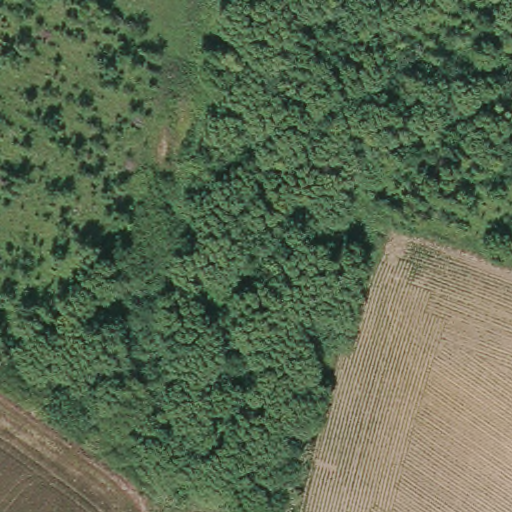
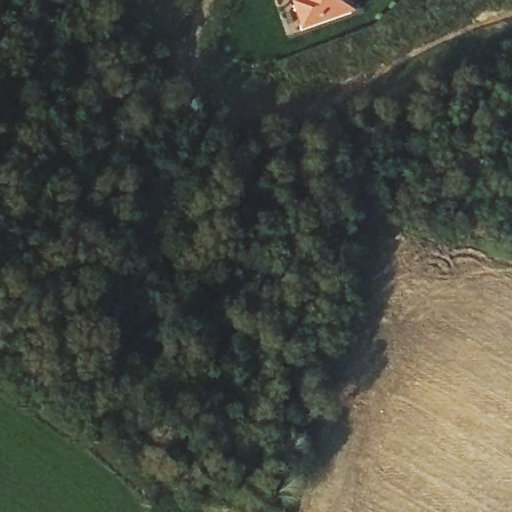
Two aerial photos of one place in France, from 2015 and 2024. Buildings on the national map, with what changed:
new [(353,15),(297,34),(289,10),(296,7),(294,0),(349,0),(353,15)]

